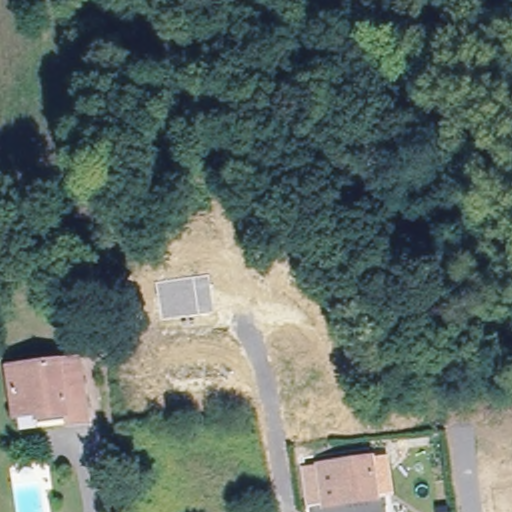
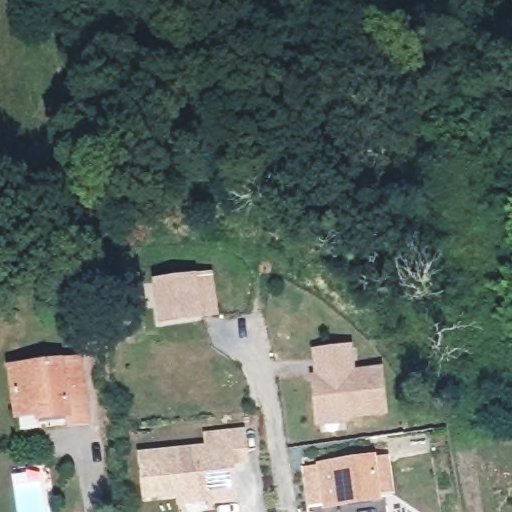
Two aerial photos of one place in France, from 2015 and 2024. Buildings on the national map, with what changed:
unchanged [(210,275),(215,312),(162,319),(157,283),(210,275)]
new [(353,344),(356,370),(383,366),(389,414),(315,424),(310,382),(315,372),(312,348),(353,344)]
unchanged [(79,352),(86,412),(70,414),(70,406),(40,409),(39,405),(19,408),(12,360),(79,352)]
new [(246,427),(250,463),(233,465),(237,499),(180,506),(178,496),(142,498),(138,451),(205,443),(204,431),(246,427)]
unchanged [(392,496),(379,499),(309,511),(302,471),(371,459),(375,477),(387,474),(392,496)]
unchanged [(426,512),(437,510),(437,512),(426,512)]

